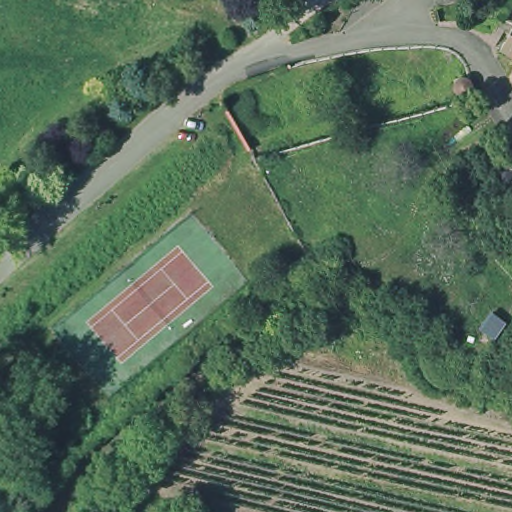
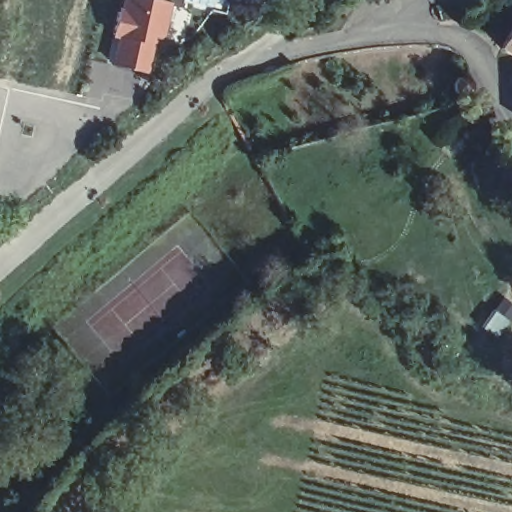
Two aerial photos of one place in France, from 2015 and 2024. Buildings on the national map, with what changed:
new [(192,9),(184,42),(159,38),(151,43),(144,72),(114,66),(122,33),(114,31),(117,11),(123,13),(126,0),(153,0),(161,1),(161,0),(181,0),(180,6),(192,9)]
unchanged [(502,48),(512,31),(512,55),(502,48)]
unchanged [(472,90),(470,94),(468,95),(465,96),(463,96),(460,95),(458,93),(456,91),(455,89),(455,86),(455,84),(456,81),(458,79),(460,78),(463,77),(466,77),(468,78),(471,80),(473,85),(472,90)]
new [(495,339),(478,327),(491,309),(507,320),(495,339)]
unchanged [(462,367),(459,371),(457,373),(454,375),(451,376),(447,376),(443,375),(440,374),(435,371),(432,366),(431,360),(432,355),(434,350),(438,346),(444,343),(451,343),(457,345),(460,349),(461,350),(464,355),(464,363),(462,367)]

